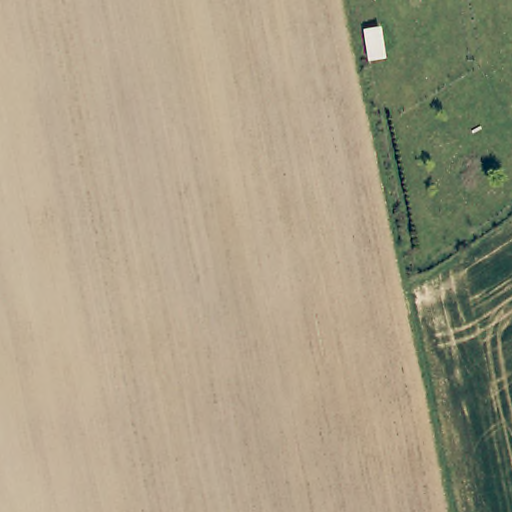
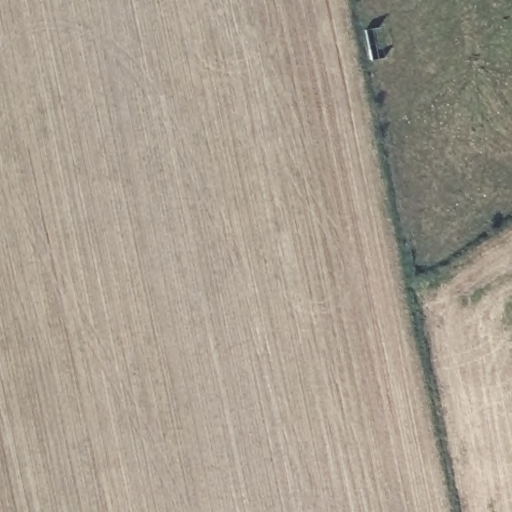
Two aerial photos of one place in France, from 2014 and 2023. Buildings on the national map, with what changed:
[]

